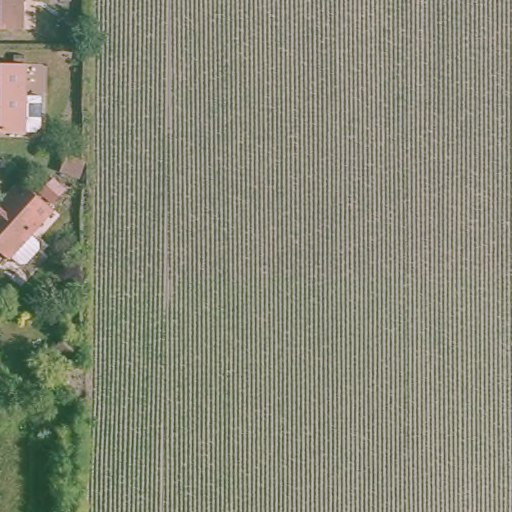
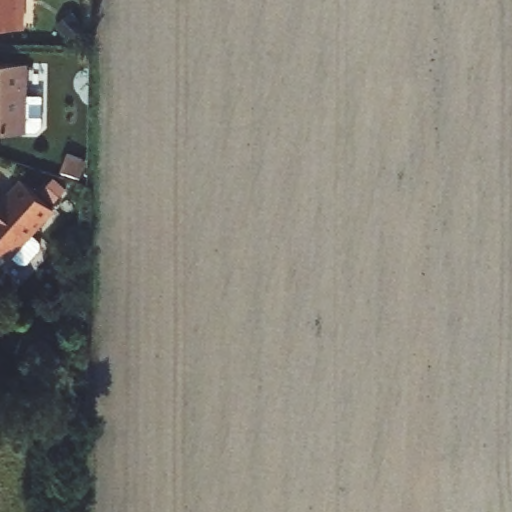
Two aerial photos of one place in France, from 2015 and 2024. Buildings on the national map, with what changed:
unchanged [(0,31),(0,0),(22,0),(22,31),(0,31)]
unchanged [(42,102),(42,132),(35,137),(26,137),(25,139),(0,138),(0,71),(25,71),(24,103),(42,102)]
unchanged [(0,254),(0,211),(4,207),(0,204),(19,182),(52,209),(8,261),(0,254)]

